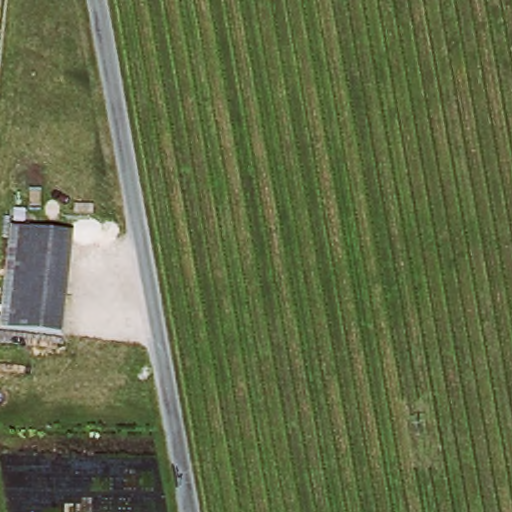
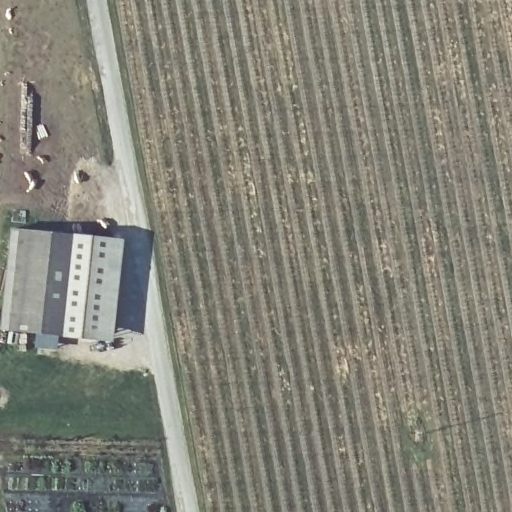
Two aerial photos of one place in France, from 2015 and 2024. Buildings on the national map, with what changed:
unchanged [(16,228),(77,233),(66,334),(5,329),(16,228)]
new [(124,239),(114,340),(66,334),(77,233),(124,239)]

